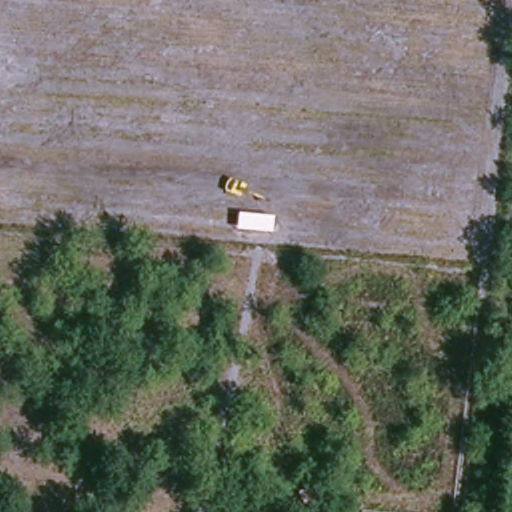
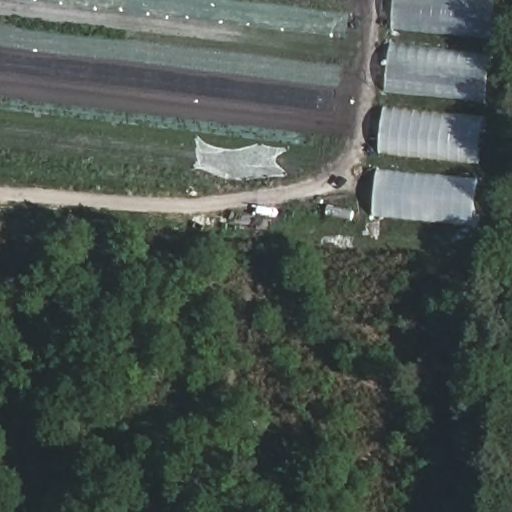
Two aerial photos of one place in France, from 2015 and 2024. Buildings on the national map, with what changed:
new [(475,226),(374,217),(398,0),(499,0),(475,226)]

